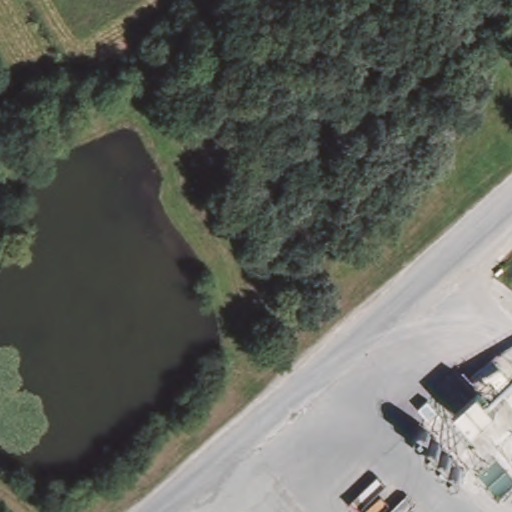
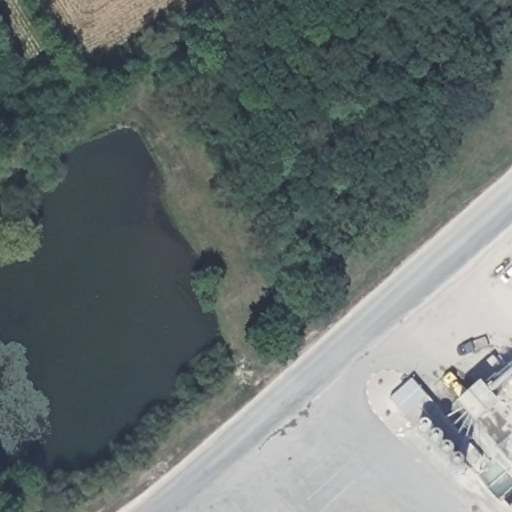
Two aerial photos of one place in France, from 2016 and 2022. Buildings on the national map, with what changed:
unchanged [(502,404),(480,426),(458,404),(483,383),(502,404)]
unchanged [(473,442),(448,463),(418,428),(442,408),(473,442)]

